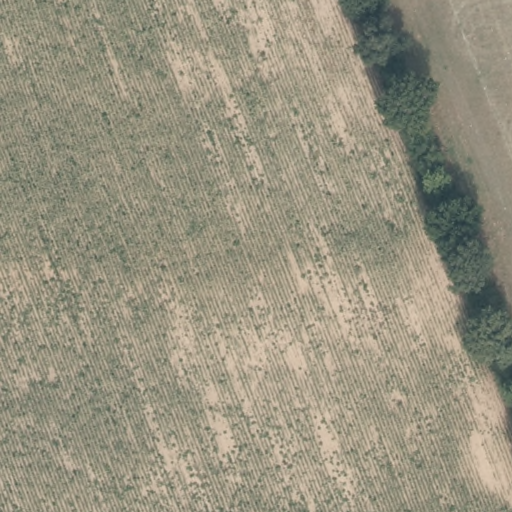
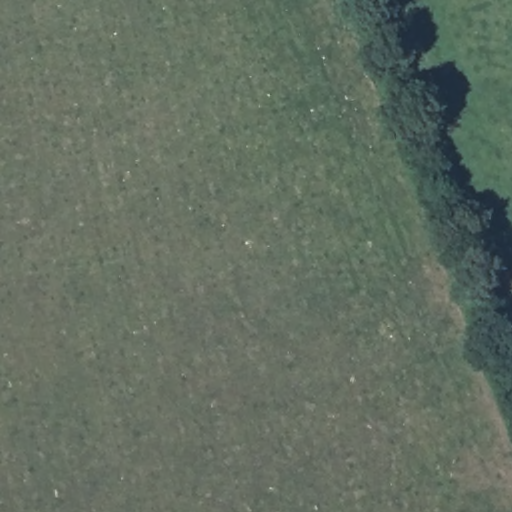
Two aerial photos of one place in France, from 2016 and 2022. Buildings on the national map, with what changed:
[]

